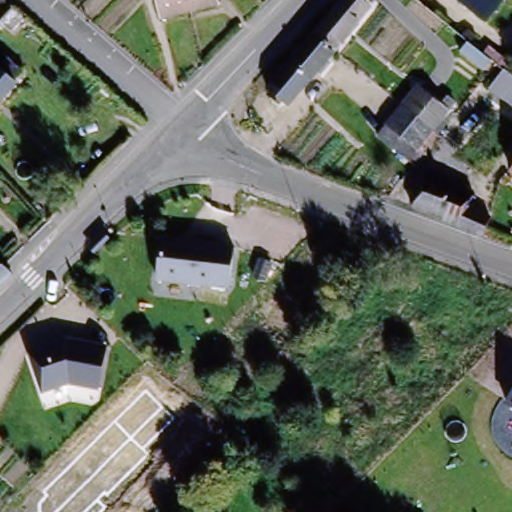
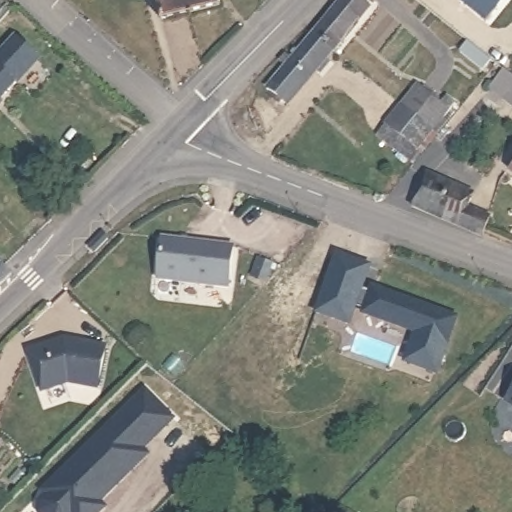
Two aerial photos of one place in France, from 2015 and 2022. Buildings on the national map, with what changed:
unchanged [(161,24),(155,0),(185,0),(190,16),(161,24)]
unchanged [(185,0),(215,0),(217,9),(190,16),(185,0)]
unchanged [(334,0),(350,0),(365,12),(326,62),(301,42),(334,0)]
unchanged [(483,22),(456,0),(501,0),(483,22)]
unchanged [(326,62),(292,104),(268,83),(301,42),(326,62)]
unchanged [(26,71),(0,101),(0,68),(1,69),(11,58),(26,71)]
unchanged [(413,121),(401,112),(416,92),(440,111),(446,104),(454,110),(433,136),(413,121)]
unchanged [(410,166),(377,142),(401,112),(413,121),(433,136),(410,166)]
unchanged [(512,175),(512,180),(510,179),(512,175)]
unchanged [(408,208),(418,177),(466,195),(463,209),(487,217),(482,236),(408,208)]
unchanged [(235,244),(232,287),(160,280),(164,238),(235,244)]
new [(342,256),(367,266),(360,287),(369,291),(370,287),(460,321),(438,376),(408,364),(420,336),(367,315),(368,311),(359,308),(352,326),(320,313),(342,256)]
unchanged [(8,267),(15,274),(0,286),(0,259),(8,267)]
unchanged [(99,386),(70,379),(43,386),(33,344),(67,336),(107,345),(99,386)]
new [(175,418),(145,448),(151,454),(102,502),(108,508),(103,512),(38,512),(36,502),(43,495),(40,491),(145,388),(175,418)]
unchanged [(512,395),(512,408),(505,405),(512,395)]

